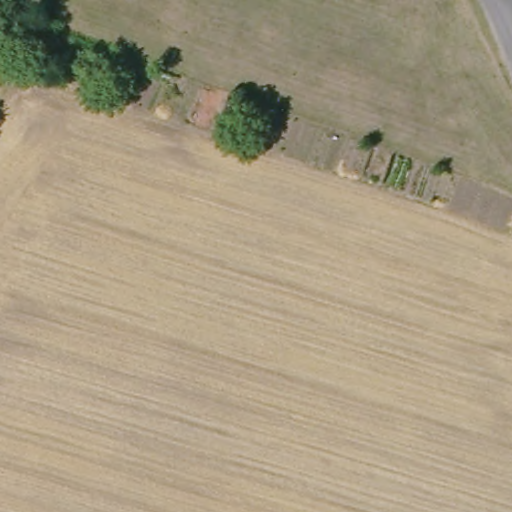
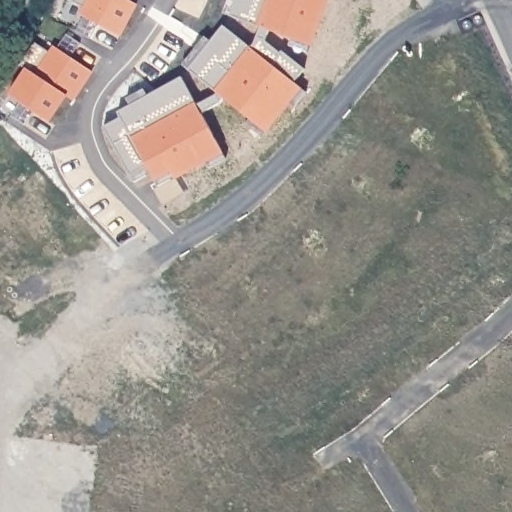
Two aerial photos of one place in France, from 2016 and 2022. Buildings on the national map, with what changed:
new [(100,31),(93,46),(66,33),(80,5),(71,0),(117,0),(139,11),(122,43),(100,31)]
new [(230,19),(236,0),(327,0),(310,47),(230,19)]
new [(188,71),(223,27),(272,66),(282,53),(305,71),(295,84),(300,89),(266,133),(188,71)]
new [(52,129),(37,119),(27,133),(21,128),(30,114),(13,102),(33,71),(23,64),(38,41),(60,56),(70,42),(83,51),(74,65),(95,79),(76,107),(69,102),(52,129)]
new [(171,173),(155,182),(147,169),(130,178),(104,130),(145,108),(141,102),(182,79),(222,154),(175,180),(171,173)]

